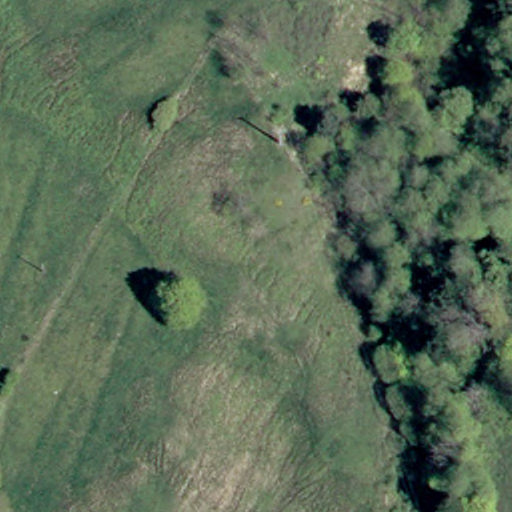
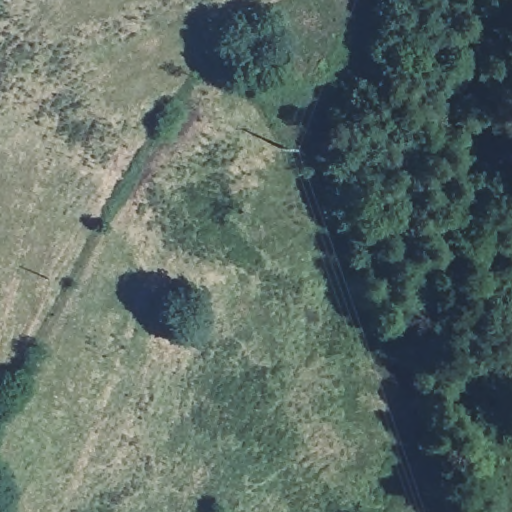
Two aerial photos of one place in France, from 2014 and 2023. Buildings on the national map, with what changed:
[]

